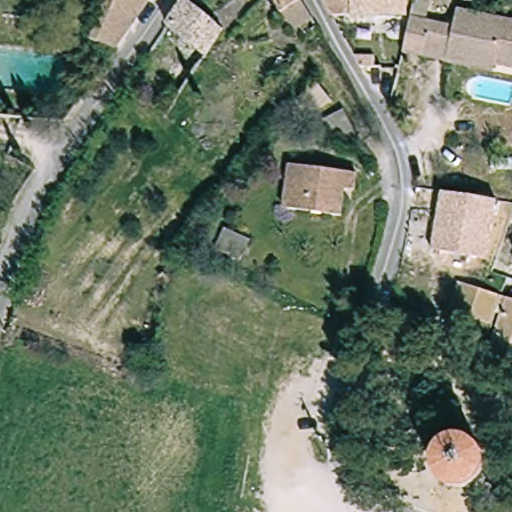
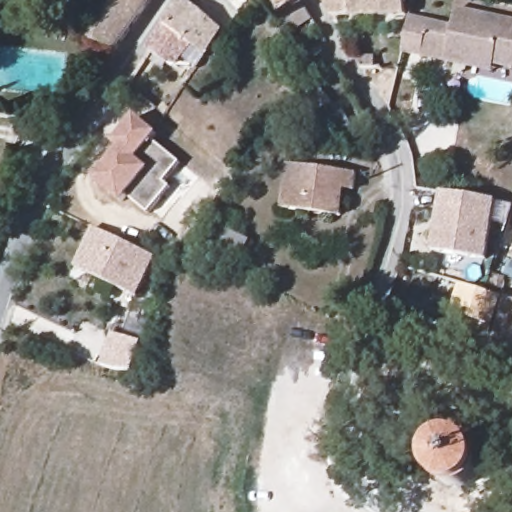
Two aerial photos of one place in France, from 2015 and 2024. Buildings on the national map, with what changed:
unchanged [(149,0),(132,23),(131,24),(111,52),(89,39),(98,17),(105,0),(149,0)]
unchanged [(277,13),(272,0),(298,0),(299,2),(277,13)]
unchanged [(336,16),(327,0),(419,0),(416,17),(336,16)]
unchanged [(454,0),(453,7),(432,4),(428,21),(460,27),(464,7),(512,18),(512,68),(502,66),(501,72),(407,54),(416,17),(419,0),(454,0)]
unchanged [(227,33),(209,57),(168,31),(188,6),(227,33)]
new [(119,141),(113,137),(131,109),(153,122),(149,129),(179,147),(165,167),(171,172),(152,200),(130,187),(125,193),(97,176),(119,141)]
unchanged [(350,186),(346,212),(290,208),(295,164),(362,171),(360,187),(350,186)]
unchanged [(497,201),(485,260),(431,249),(440,192),(497,201)]
new [(94,224),(153,249),(136,289),(77,263),(94,224)]
unchanged [(250,242),(239,268),(212,254),(224,232),(250,242)]
unchanged [(507,295),(497,326),(456,313),(466,282),(507,295)]
unchanged [(497,326),(507,295),(512,297),(512,356),(490,349),(497,326)]
new [(111,325),(140,334),(130,362),(101,355),(111,325)]

